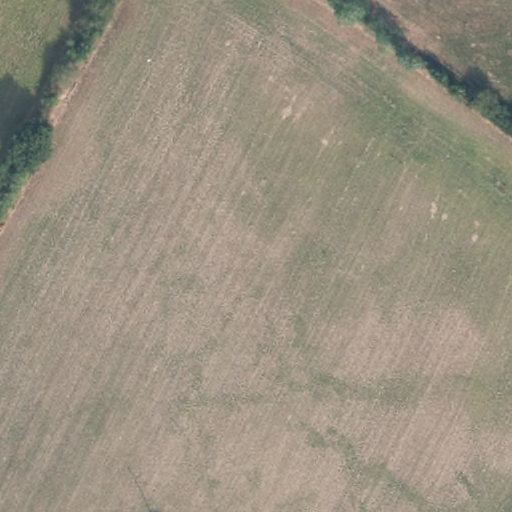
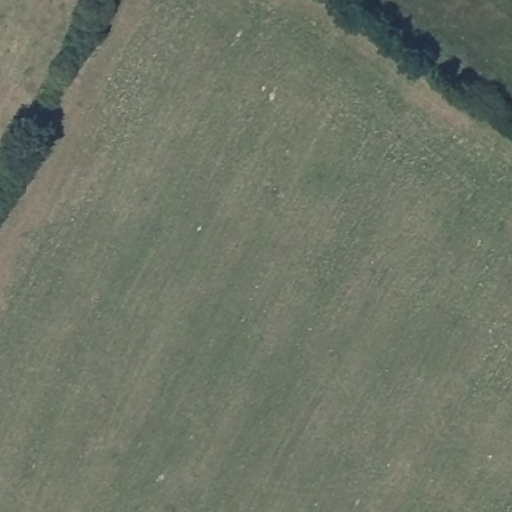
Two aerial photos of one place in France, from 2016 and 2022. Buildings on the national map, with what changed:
[]

